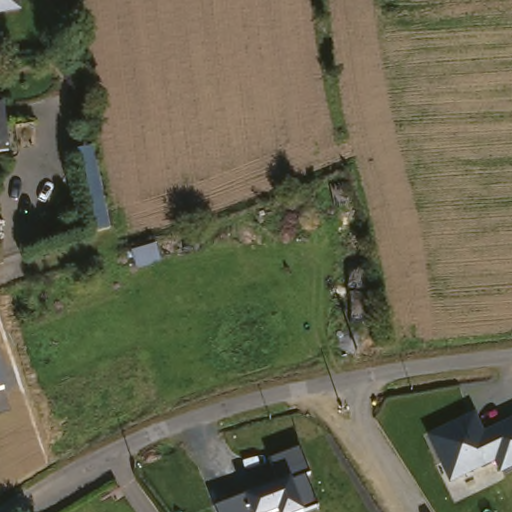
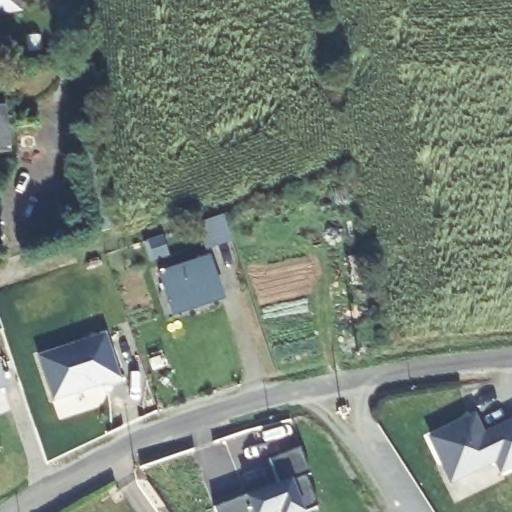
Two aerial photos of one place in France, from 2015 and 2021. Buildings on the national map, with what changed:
unchanged [(0,16),(0,0),(18,0),(20,13),(0,16)]
unchanged [(9,154),(0,155),(0,110),(3,110),(9,154)]
unchanged [(118,226),(100,234),(81,155),(103,148),(118,226)]
new [(180,313),(170,283),(219,265),(233,305),(198,317),(184,322),(180,313)]
new [(122,385),(107,391),(105,386),(51,404),(35,357),(105,333),(122,385)]
unchanged [(0,391),(0,374),(5,389),(0,391)]
unchanged [(475,414),(482,432),(512,418),(512,467),(500,472),(495,463),(449,483),(427,435),(475,414)]
unchanged [(215,509),(245,498),(279,484),(270,460),(299,448),(309,474),(304,476),(317,507),(306,512),(217,512),(215,509)]

